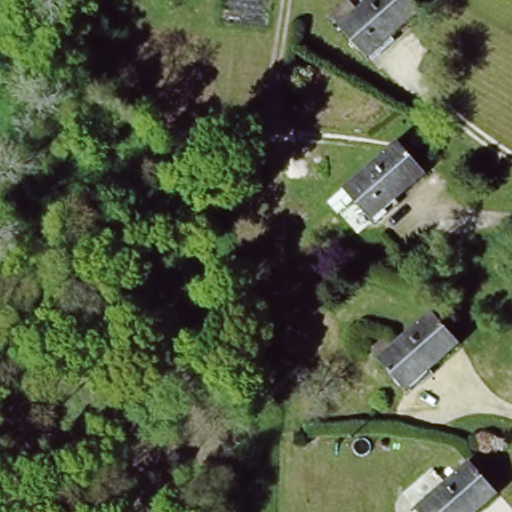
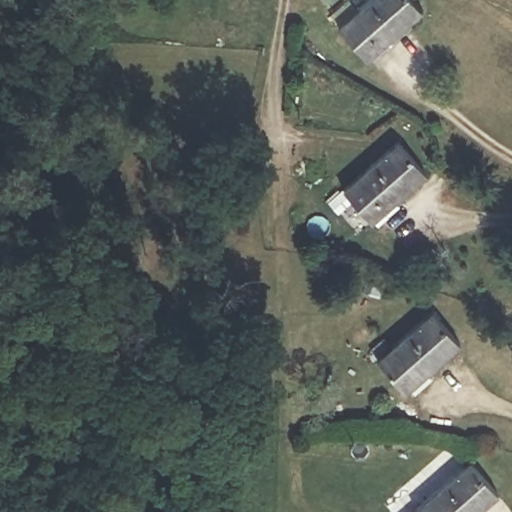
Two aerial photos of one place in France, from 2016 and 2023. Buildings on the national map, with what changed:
unchanged [(369,0),(412,0),(423,12),(369,60),(339,27),(369,0)]
unchanged [(398,139),(429,175),(368,220),(339,187),(398,139)]
unchanged [(429,310),(459,342),(402,390),(370,358),(429,310)]
unchanged [(499,493),(477,512),(417,512),(413,507),(469,460),(499,493)]

